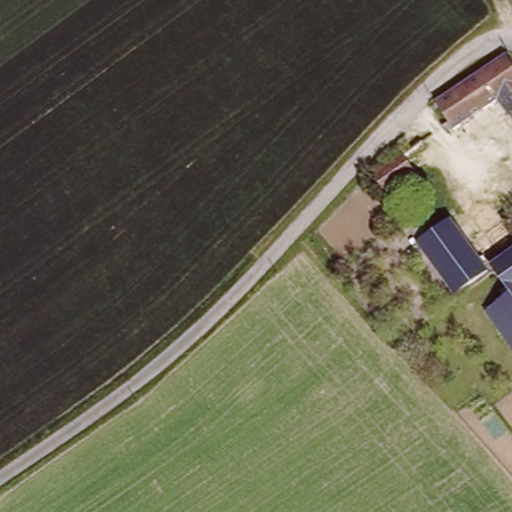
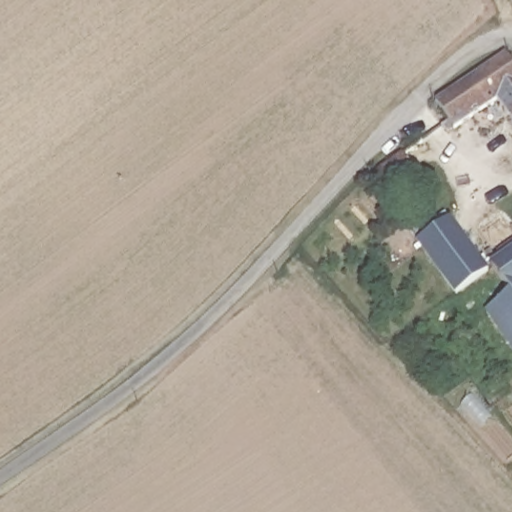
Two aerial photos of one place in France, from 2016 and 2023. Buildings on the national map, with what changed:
unchanged [(439,102),(510,54),(512,58),(512,105),(505,96),(458,129),(452,120),(439,102)]
unchanged [(382,193),(370,176),(401,154),(413,171),(382,193)]
unchanged [(460,293),(422,241),(410,225),(422,217),(434,233),(453,218),(487,264),(488,266),(492,270),(460,293)]
unchanged [(495,265),(512,252),(512,289),(495,265)]
unchanged [(512,293),(512,343),(490,310),(512,293)]

